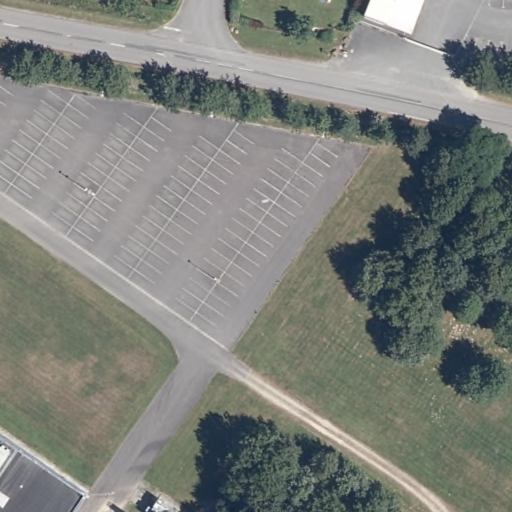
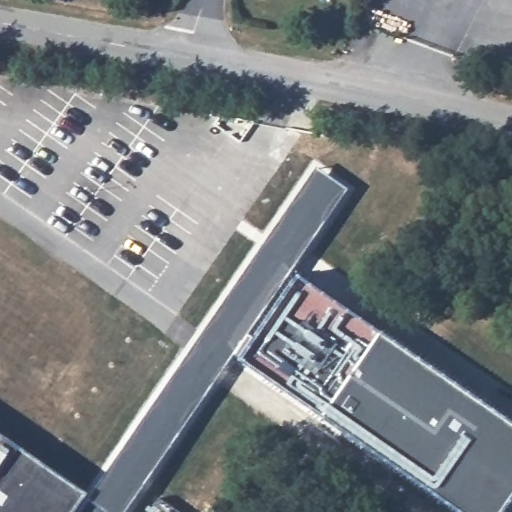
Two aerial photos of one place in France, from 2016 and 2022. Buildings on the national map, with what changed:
new [(290,271),(230,357),(202,397),(171,376),(315,168),(346,190),(290,271)]
new [(512,424),(512,497),(502,512),(456,512),(230,357),(290,271),(512,424)]
unchanged [(83,505),(80,504),(75,512),(0,512),(0,428),(93,490),(83,505)]
unchanged [(160,504),(172,512),(155,512),(160,504)]

